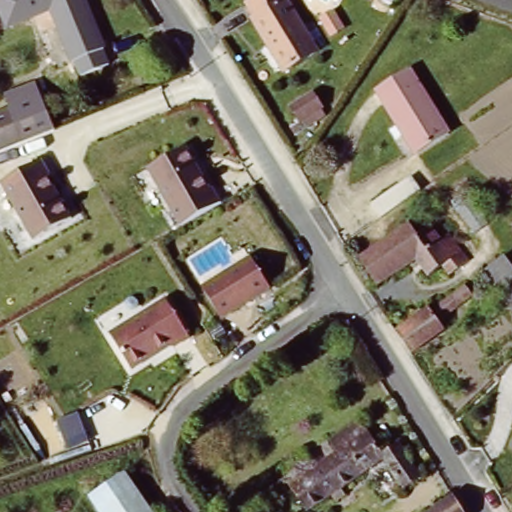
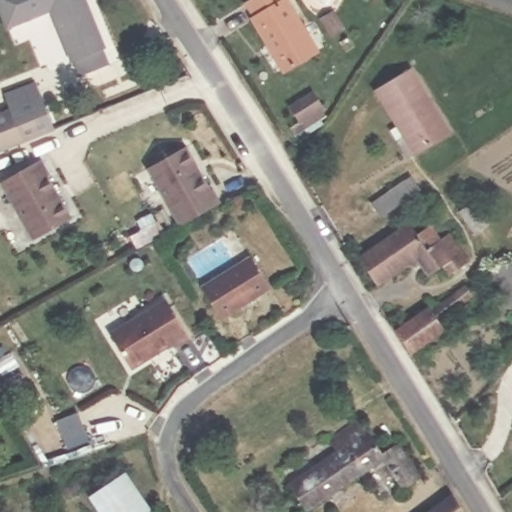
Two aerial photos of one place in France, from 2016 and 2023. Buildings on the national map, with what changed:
unchanged [(82,68),(57,11),(41,15),(35,0),(90,0),(115,62),(85,75),(82,68)]
unchanged [(307,55),(280,69),(247,19),(250,15),(244,5),(252,0),(286,0),(280,3),(307,55)]
unchanged [(405,69),(445,134),(414,152),(375,87),(405,69)]
unchanged [(58,128),(0,152),(0,111),(6,108),(0,97),(35,83),(58,128)]
unchanged [(208,187),(212,185),(220,201),(178,226),(147,166),(187,145),(208,187)]
unchanged [(53,178),(48,181),(70,220),(32,241),(0,181),(40,158),(53,178)]
unchanged [(378,226),(372,215),(409,188),(417,200),(378,226)]
unchanged [(473,245),(458,223),(472,214),(487,237),(473,245)]
unchanged [(420,219),(441,248),(454,240),(470,267),(453,277),(445,263),(425,274),(418,261),(370,291),(353,262),(420,219)]
unchanged [(512,262),(512,312),(482,271),(505,252),(512,262)]
unchanged [(269,289),(218,320),(199,285),(249,254),(269,289)]
unchanged [(463,284),(473,301),(438,322),(445,332),(404,357),(388,331),(463,284)]
unchanged [(188,336),(176,344),(174,342),(129,371),(107,332),(165,298),(188,336)]
unchanged [(381,448),(392,443),(418,481),(405,488),(391,463),(310,512),(295,485),(344,456),(335,443),(366,423),(381,448)]
unchanged [(124,473),(152,512),(94,512),(85,500),(124,473)]
unchanged [(459,512),(427,512),(450,496),(459,512)]

